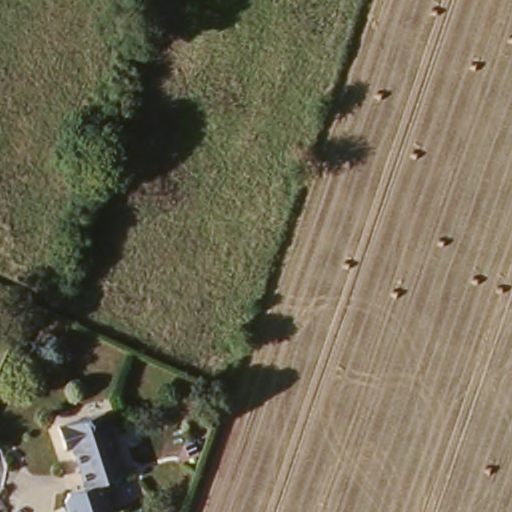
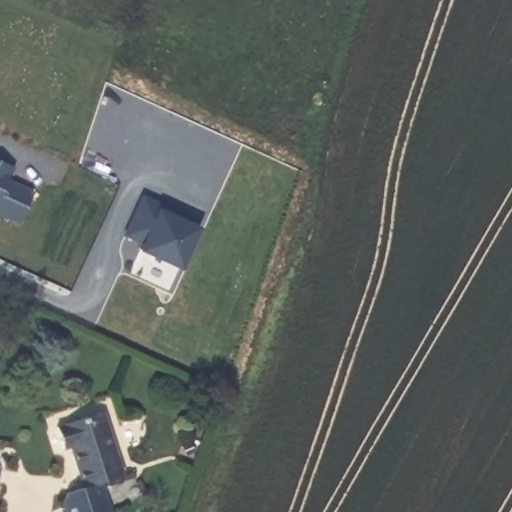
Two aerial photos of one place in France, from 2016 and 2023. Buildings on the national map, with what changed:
new [(12,179),(35,190),(20,224),(0,215),(0,161),(16,169),(12,179)]
new [(184,211),(179,219),(199,228),(181,270),(138,252),(142,243),(123,237),(142,194),(184,211)]
unchanged [(106,414),(124,480),(82,489),(72,448),(65,448),(60,424),(106,414)]
new [(66,512),(61,496),(86,490),(93,512),(66,512)]

